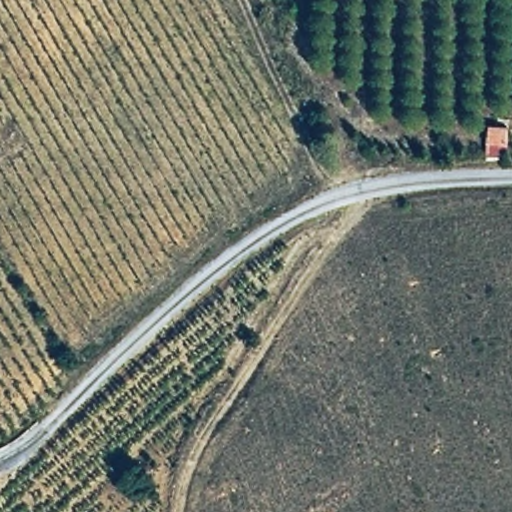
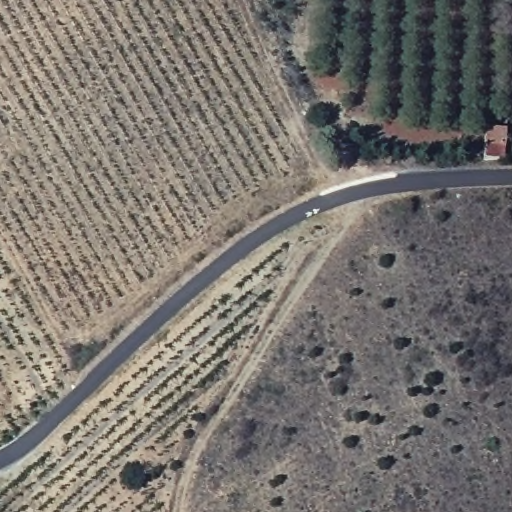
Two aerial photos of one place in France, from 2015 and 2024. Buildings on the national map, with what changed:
unchanged [(506,127),(502,156),(484,155),(486,123),(506,127)]

